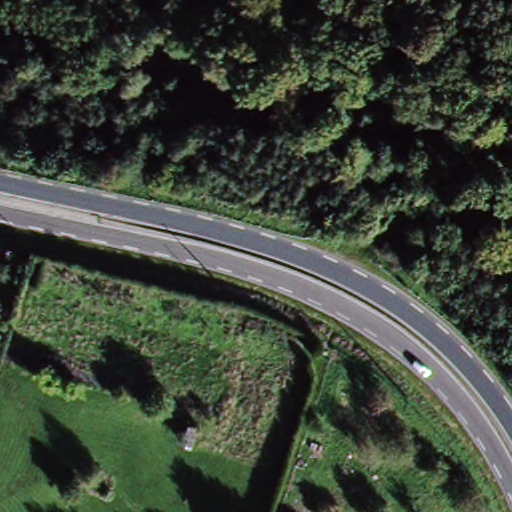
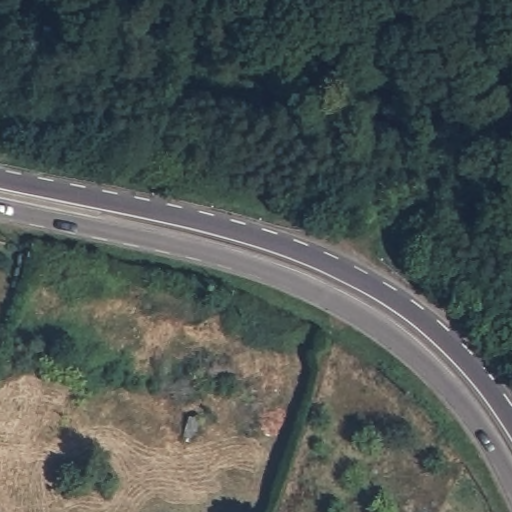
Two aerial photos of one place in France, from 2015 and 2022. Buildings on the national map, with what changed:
unchanged [(512,249),(494,218),(512,207),(512,249)]

